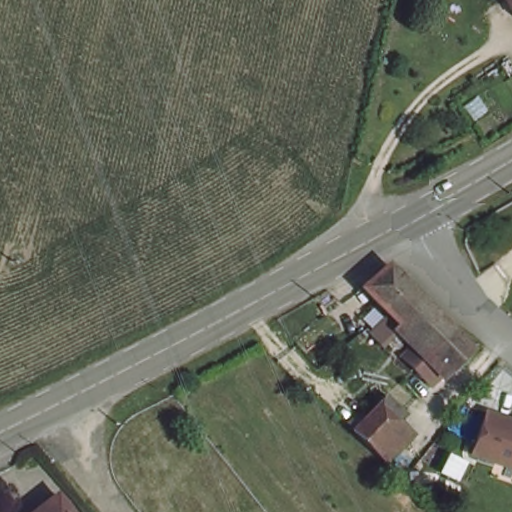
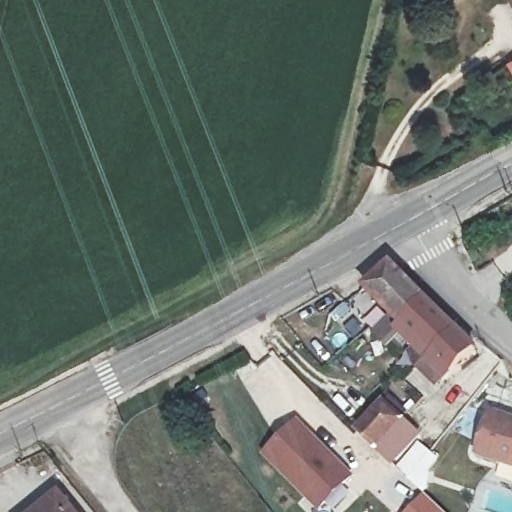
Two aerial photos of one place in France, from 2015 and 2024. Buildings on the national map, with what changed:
unchanged [(511,75),(502,60),(512,53),(512,74),(511,75)]
unchanged [(475,346),(451,371),(366,282),(392,261),(475,346)]
unchanged [(384,396),(415,427),(389,453),(357,422),(384,396)]
unchanged [(512,413),(512,459),(477,446),(492,406),(512,413)]
new [(319,512),(318,512),(261,453),(296,417),(353,476),(319,512)]
unchanged [(44,501),(60,488),(76,512),(43,512),(50,507),(44,501)]

